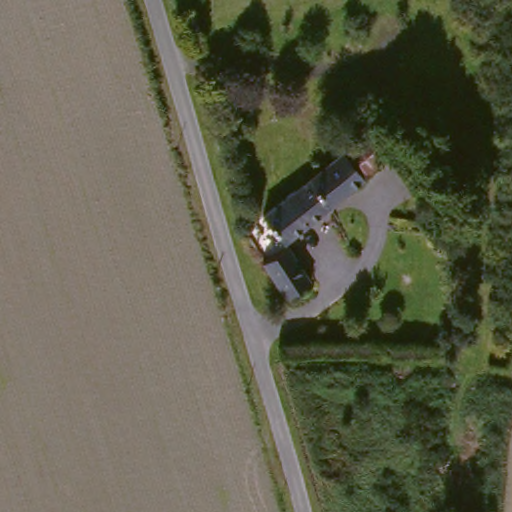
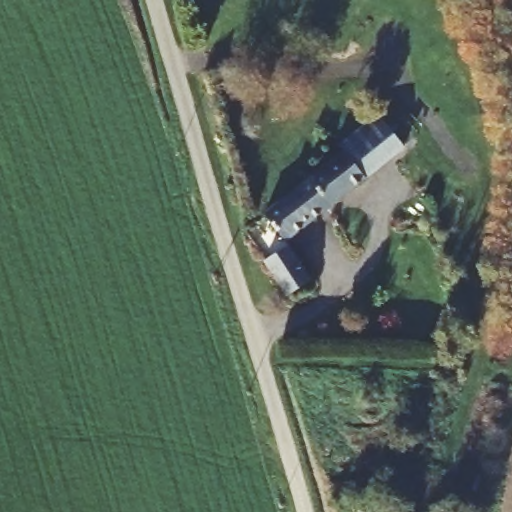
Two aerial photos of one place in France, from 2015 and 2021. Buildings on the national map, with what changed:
unchanged [(334,150),(372,122),(398,155),(358,185),(339,159),(334,150)]
unchanged [(339,159),(358,185),(276,246),(260,216),(339,159)]
unchanged [(311,285),(285,303),(261,269),(286,250),(311,285)]

